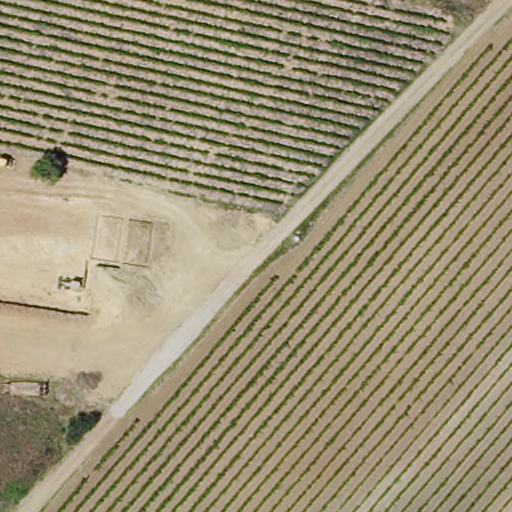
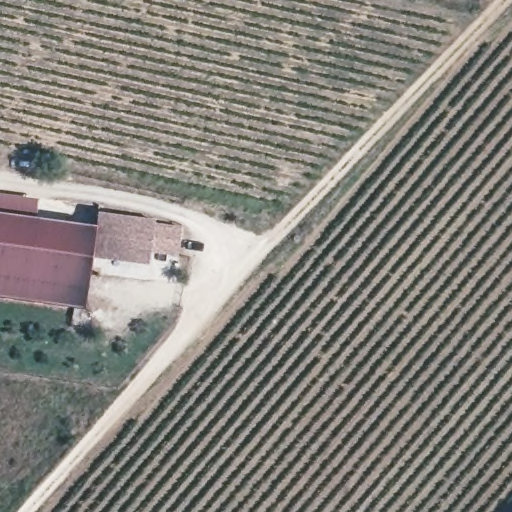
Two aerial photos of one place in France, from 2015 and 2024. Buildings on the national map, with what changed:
new [(150,254),(149,264),(88,257),(82,312),(0,300),(0,217),(93,229),(96,214),(155,222),(155,227),(176,229),(175,259),(150,254)]

